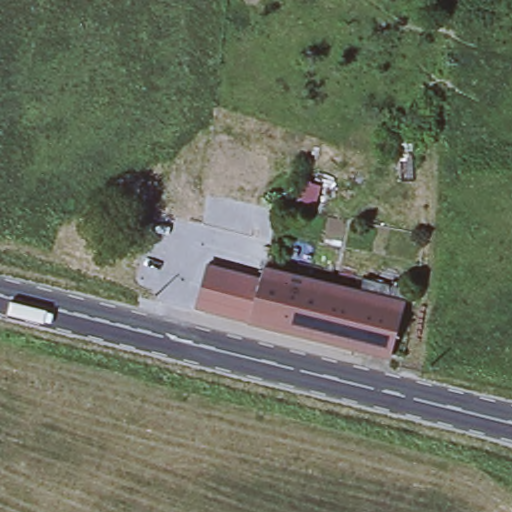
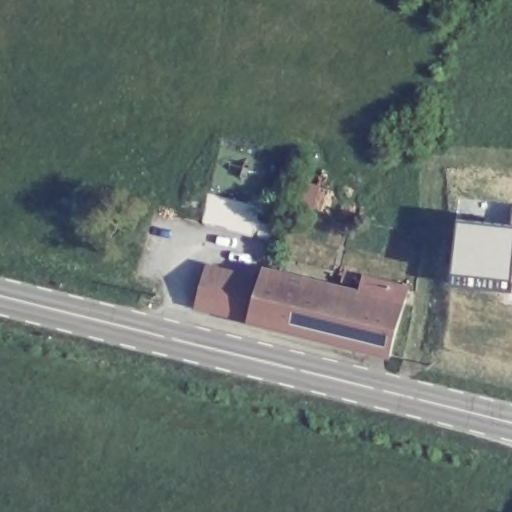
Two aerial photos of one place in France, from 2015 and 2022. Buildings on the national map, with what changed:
new [(457,222),(483,224),(510,228),(512,207),(512,253),(509,253),(508,263),(506,281),(480,280),(451,277),(456,230),(457,222)]
unchanged [(190,302),(200,262),(253,275),(243,315),(190,302)]
unchanged [(253,275),(256,263),(298,273),(283,325),(243,315),(253,275)]
unchanged [(340,339),(283,325),(298,273),(353,287),(357,273),(401,284),(397,298),(383,349),(340,339)]

